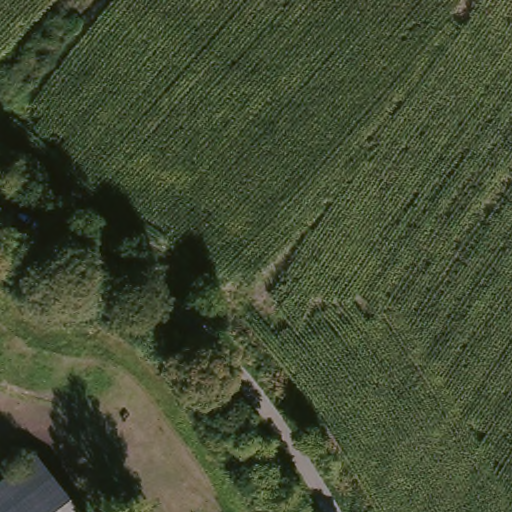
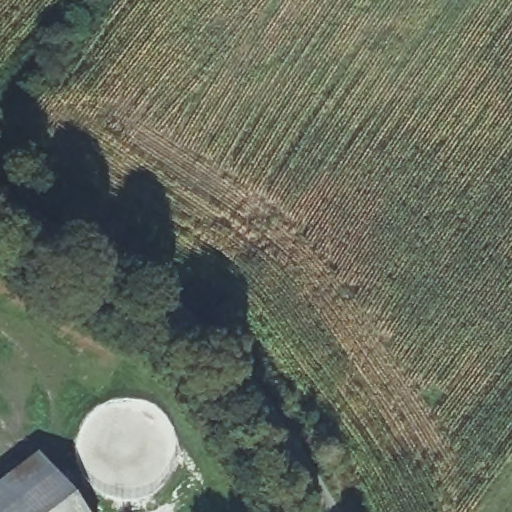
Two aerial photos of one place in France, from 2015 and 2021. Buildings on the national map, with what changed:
unchanged [(41,461),(79,512),(0,512),(0,493),(41,461)]

